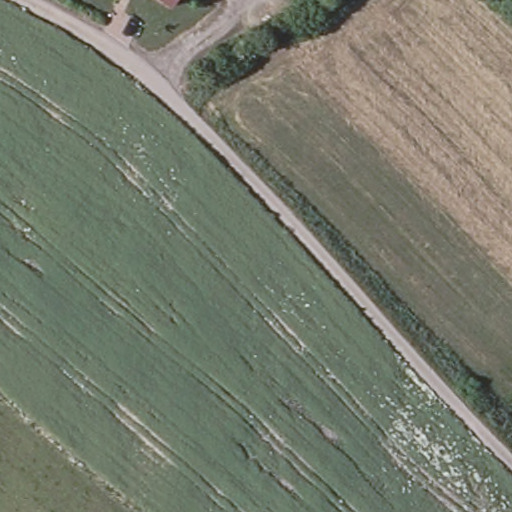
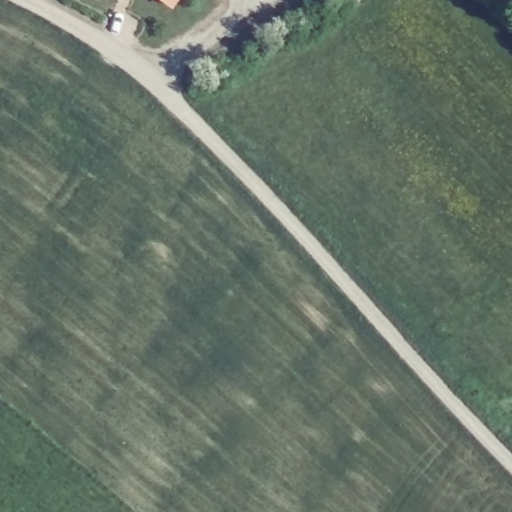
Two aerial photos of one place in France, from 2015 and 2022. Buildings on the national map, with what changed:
unchanged [(176,0),(171,6),(163,0),(176,0)]

